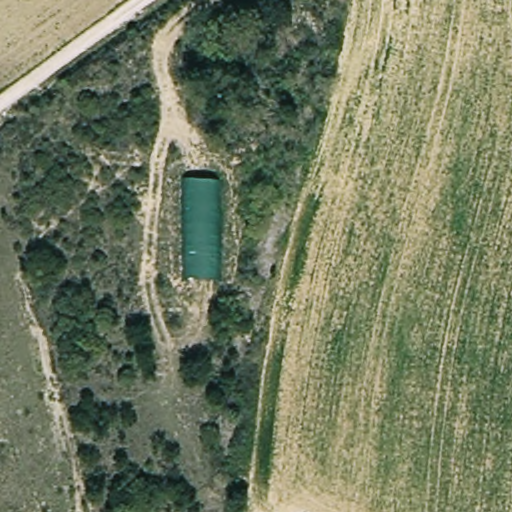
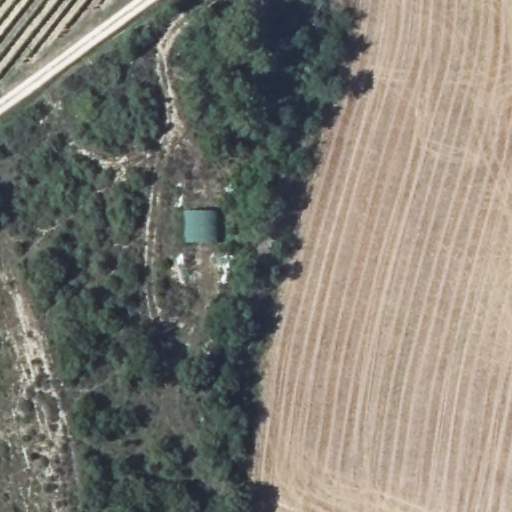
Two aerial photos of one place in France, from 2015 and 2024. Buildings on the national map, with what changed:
unchanged [(217,181),(217,280),(187,281),(186,183),(217,181)]

